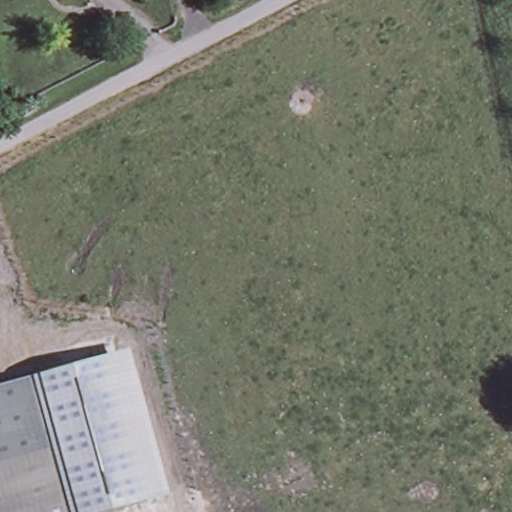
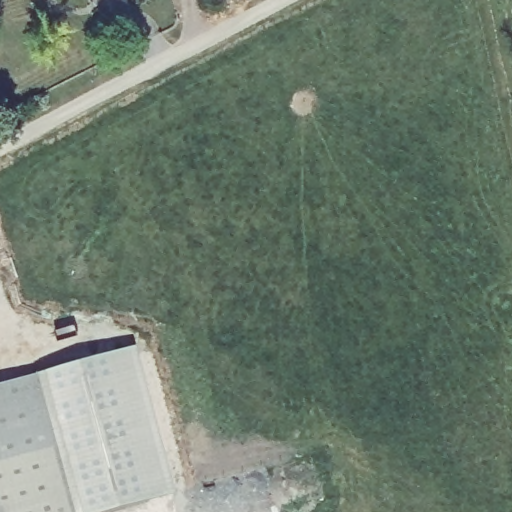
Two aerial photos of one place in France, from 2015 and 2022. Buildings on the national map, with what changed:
unchanged [(173,497),(120,512),(71,512),(35,378),(132,350),(173,497)]
unchanged [(69,512),(50,512),(15,385),(31,380),(69,512)]
unchanged [(50,512),(0,512),(0,389),(15,385),(50,512)]

